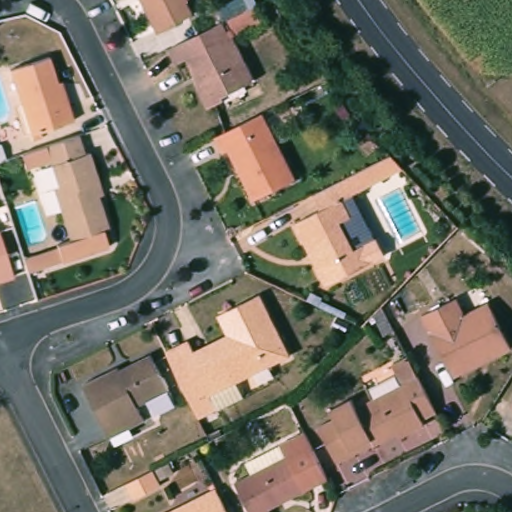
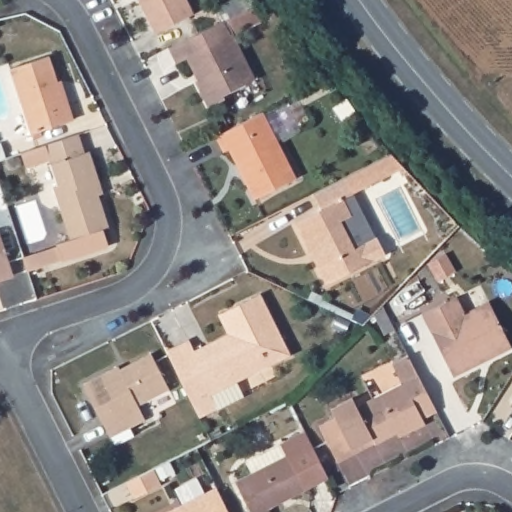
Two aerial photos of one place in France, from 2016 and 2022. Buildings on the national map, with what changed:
unchanged [(154,33),(137,0),(184,0),(191,15),(154,33)]
unchanged [(253,80),(222,95),(224,99),(207,107),(194,81),(200,78),(189,56),(174,64),(167,50),(221,22),(252,7),(260,24),(234,36),(232,37),(253,80)]
unchanged [(30,135),(10,69),(48,56),(56,84),(61,82),(67,104),(73,121),(30,135)]
unchanged [(298,180),(255,201),(230,151),(225,154),(217,139),(266,115),(298,180)]
unchanged [(93,156),(102,184),(107,197),(99,200),(109,230),(104,232),(110,249),(64,263),(63,258),(58,246),(72,241),(44,153),(84,140),(90,157),(93,156)]
unchanged [(351,191),(340,196),(347,212),(337,219),(351,248),(361,243),(369,259),(322,281),(292,220),(318,206),(311,190),(343,174),(351,191)]
unchanged [(0,279),(0,240),(12,275),(0,279)]
unchanged [(200,417),(198,412),(169,351),(192,339),(197,348),(230,332),(222,313),(230,309),(264,292),(294,355),(232,385),(236,393),(219,401),(221,406),(200,417)]
unchanged [(450,382),(421,320),(455,303),(463,321),(487,310),(489,315),(508,353),(450,382)]
unchanged [(398,435),(340,463),(322,428),(339,420),(333,410),(353,400),(358,408),(406,385),(397,365),(411,357),(438,413),(424,420),(426,425),(410,433),(400,439),(398,435)]
unchanged [(121,373),(151,358),(168,391),(137,406),(146,423),(111,440),(85,387),(119,369),(121,373)]
unchanged [(506,402),(512,394),(512,406),(506,402)]
unchanged [(271,512),(251,512),(238,485),(253,477),(247,465),(281,448),(307,435),(330,481),(270,511),(271,512)]
unchanged [(215,487),(228,512),(165,512),(215,487)]

